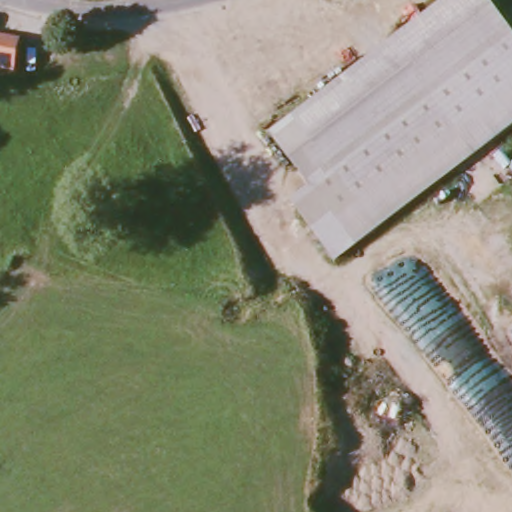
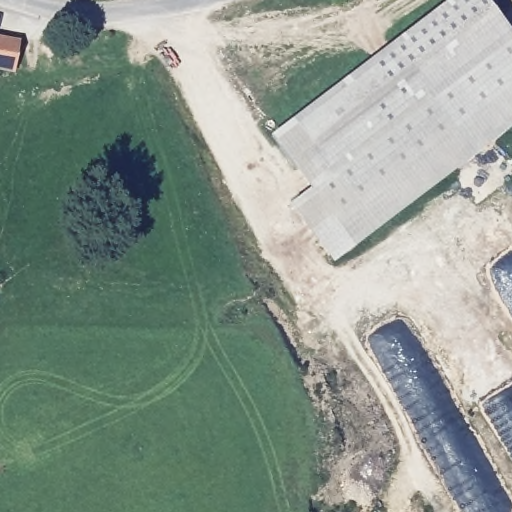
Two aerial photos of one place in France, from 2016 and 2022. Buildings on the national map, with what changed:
unchanged [(489,0),(512,31),(512,127),(346,258),(301,202),(319,188),(280,135),(453,0),(489,0)]
unchanged [(0,69),(0,40),(21,44),(15,71),(0,69)]

